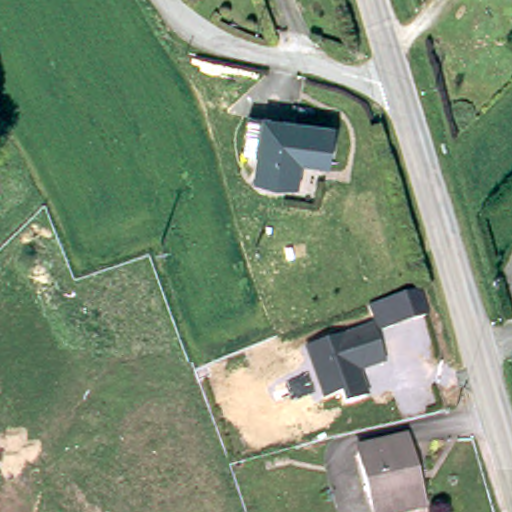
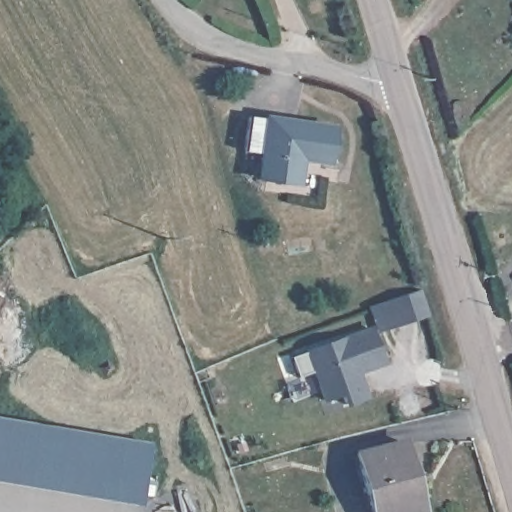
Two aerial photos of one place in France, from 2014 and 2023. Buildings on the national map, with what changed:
unchanged [(255,146),(260,112),(342,125),(337,158),(310,153),(306,179),(268,173),(272,148),(255,146)]
unchanged [(426,318),(377,332),(385,366),(363,372),(370,397),(345,403),(341,395),(321,402),(303,347),(374,325),(370,302),(418,286),(426,318)]
new [(151,442),(140,505),(0,482),(0,417),(151,442)]
unchanged [(414,478),(410,479),(419,511),(415,512),(374,512),(359,455),(405,443),(414,478)]

